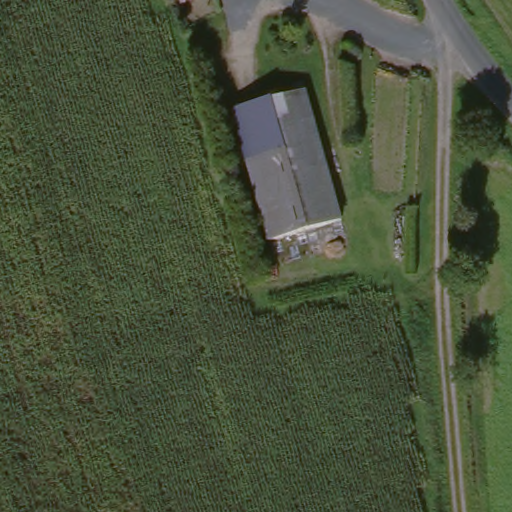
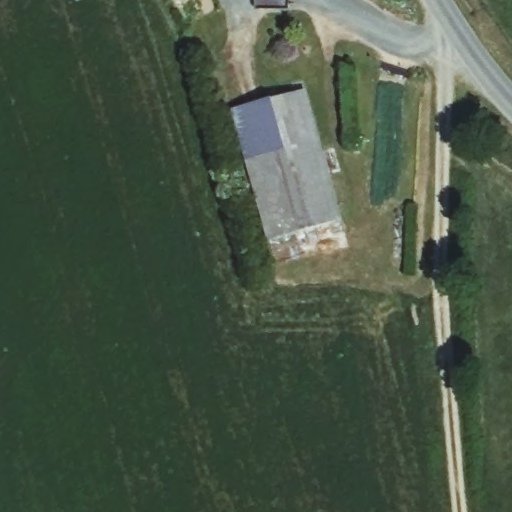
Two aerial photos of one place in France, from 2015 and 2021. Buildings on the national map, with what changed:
unchanged [(302,91),(340,215),(268,238),(229,112),(302,91)]

